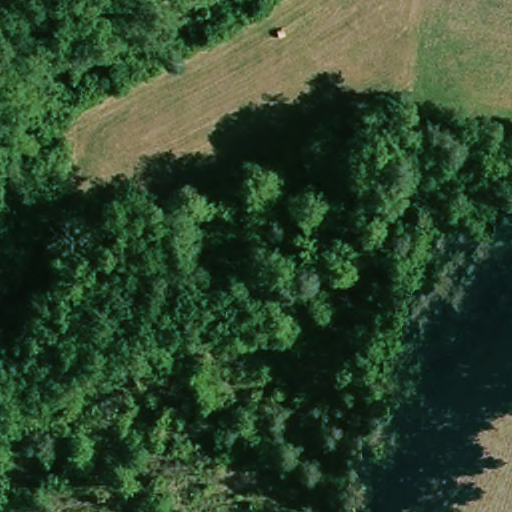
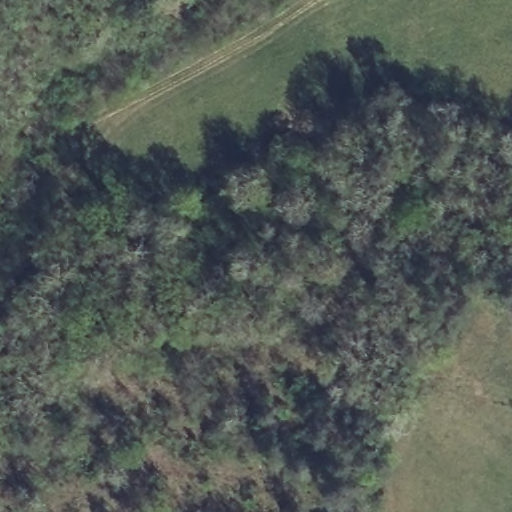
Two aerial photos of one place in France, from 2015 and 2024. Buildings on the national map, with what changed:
[]

